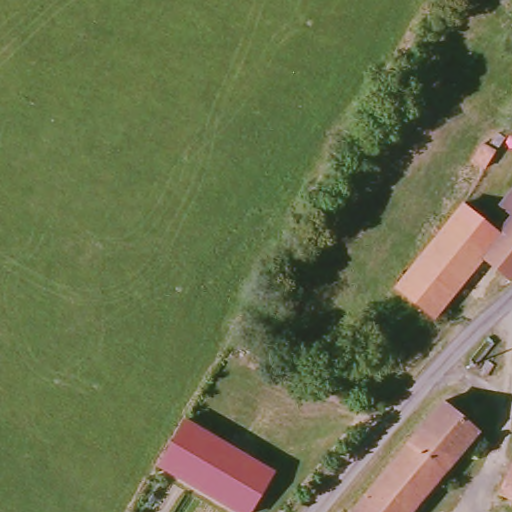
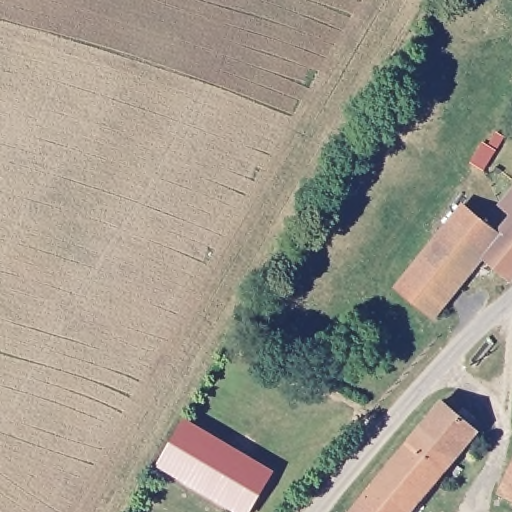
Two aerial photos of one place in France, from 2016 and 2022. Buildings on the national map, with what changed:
unchanged [(488,146),(492,140),(497,134),(503,138),(500,144),(495,151),(488,146)]
unchanged [(395,288),(464,204),(499,232),(511,216),(500,206),(512,190),(512,279),(510,281),(482,258),(433,318),(395,288)]
unchanged [(437,397),(440,398),(446,391),(457,401),(451,408),(472,426),(400,512),(341,512),(437,397)]
unchanged [(155,465),(185,416),(272,468),(248,512),(234,512),(155,465)]
unchanged [(505,493),(512,478),(512,497),(505,493)]

